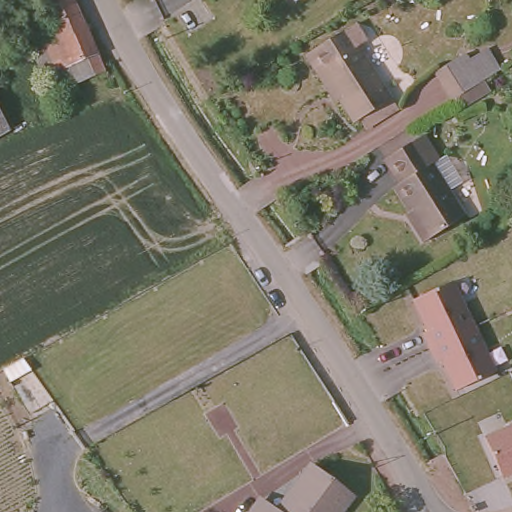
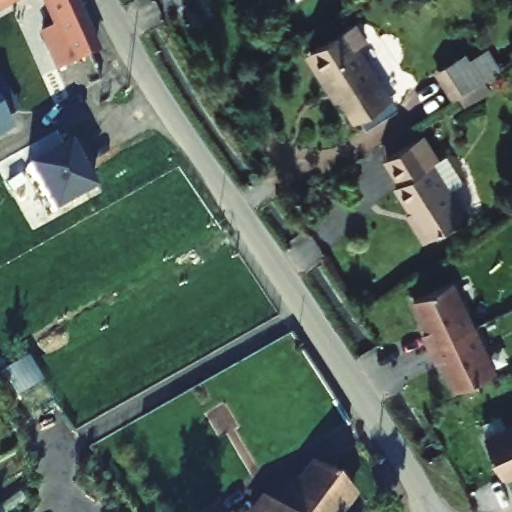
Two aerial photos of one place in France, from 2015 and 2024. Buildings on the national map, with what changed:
unchanged [(0,0),(14,0),(0,8),(0,0)]
unchanged [(36,0),(65,0),(74,20),(50,31),(36,0)]
unchanged [(353,50),(386,100),(352,122),(336,97),(330,100),(302,59),(292,44),(337,15),(347,30),(357,47),(353,50)]
unchanged [(25,45),(52,36),(50,31),(74,20),(91,61),(44,82),(25,45)]
unchanged [(464,107),(457,97),(451,101),(434,73),(467,52),(470,59),(490,47),(502,70),(485,80),(492,92),(464,107)]
unchanged [(0,134),(0,120),(6,131),(0,134)]
new [(73,139),(97,182),(52,207),(31,159),(73,139)]
unchanged [(415,143),(459,209),(416,236),(399,210),(402,207),(377,167),(415,143)]
unchanged [(501,373),(463,392),(447,362),(442,364),(428,336),(434,333),(418,302),(457,283),(501,373)]
unchanged [(478,422),(501,412),(506,423),(512,420),(512,473),(503,477),(478,422)]
unchanged [(313,467),(353,500),(343,512),(246,512),(260,498),(276,508),(307,475),(313,467)]

